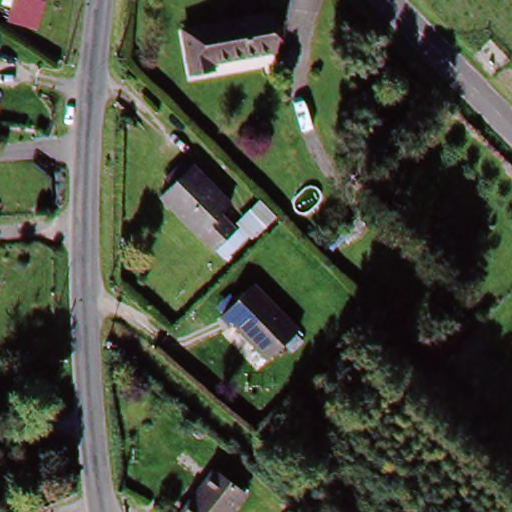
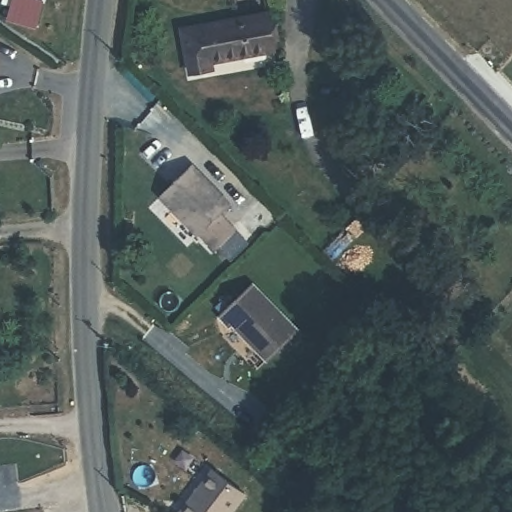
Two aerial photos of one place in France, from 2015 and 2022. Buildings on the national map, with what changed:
unchanged [(268,17),(274,54),(210,64),(204,27),(268,17)]
unchanged [(210,64),(210,71),(187,75),(180,31),(204,27),(210,64)]
unchanged [(214,200),(222,209),(197,234),(192,239),(155,202),(164,192),(157,185),(175,167),(182,174),(185,172),(214,200)]
unchanged [(222,209),(237,226),(260,202),(273,217),(229,262),(197,234),(222,209)]
unchanged [(230,323),(227,327),(219,318),(252,285),(295,327),(265,357),(230,323)]
unchanged [(212,470),(245,496),(231,512),(178,512),(212,470)]

